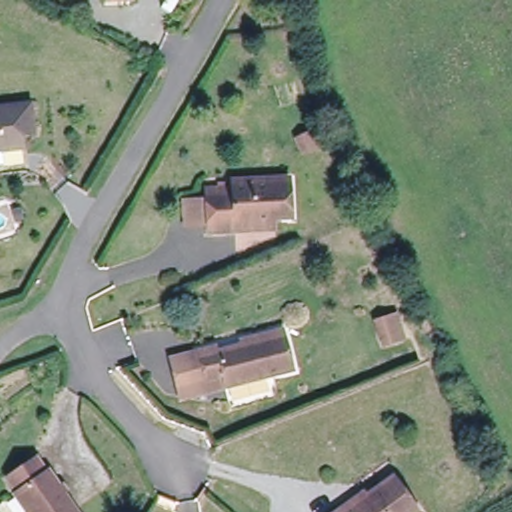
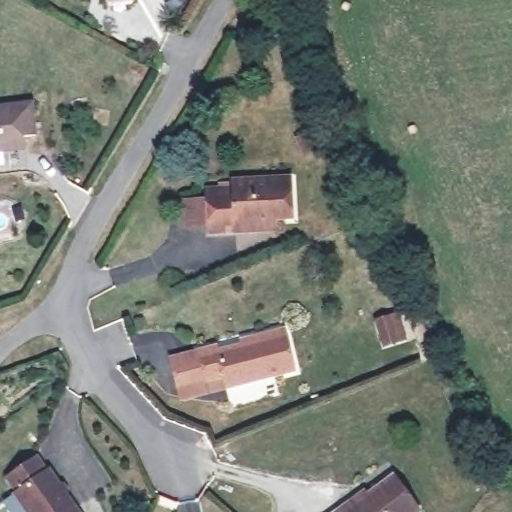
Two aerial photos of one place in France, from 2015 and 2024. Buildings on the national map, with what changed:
unchanged [(37,113),(27,116),(30,130),(7,136),(0,131),(0,89),(29,81),(37,113)]
unchanged [(237,227),(211,228),(210,183),(234,183),(234,175),(293,174),(293,211),(276,212),(276,227),(237,227)]
unchanged [(376,316),(402,310),(409,336),(383,342),(376,316)]
unchanged [(220,345),(221,350),(250,342),(249,338),(283,330),(293,374),(214,393),(203,350),(220,345)]
unchanged [(190,400),(179,355),(203,350),(214,393),(190,400)]
unchanged [(30,452),(42,467),(47,463),(83,512),(30,512),(14,490),(20,485),(8,470),(30,452)]
unchanged [(423,511),(422,512),(335,512),(368,486),(371,491),(396,473),(423,511)]

